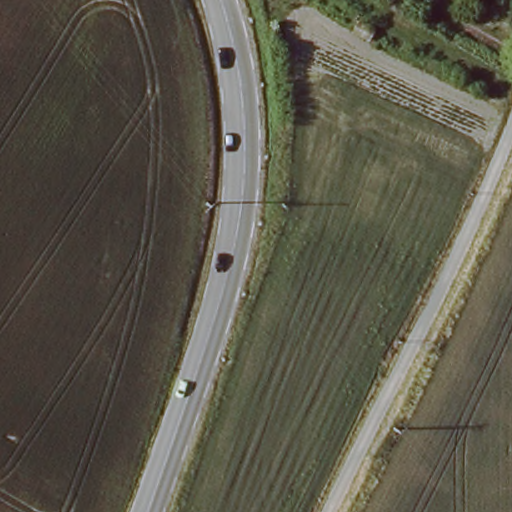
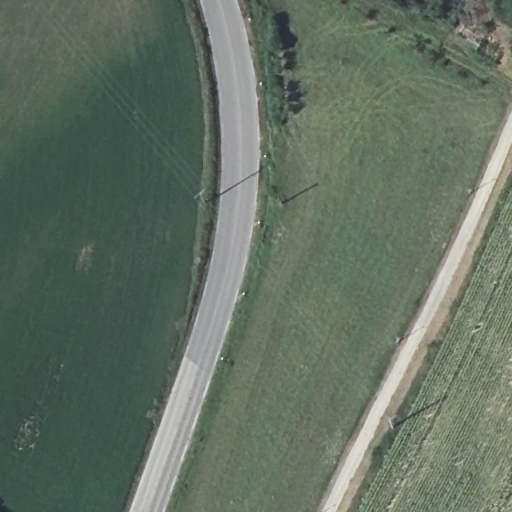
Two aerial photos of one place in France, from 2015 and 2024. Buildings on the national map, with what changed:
[]

